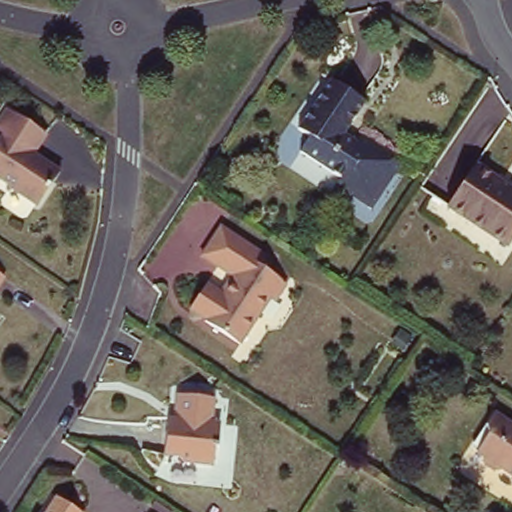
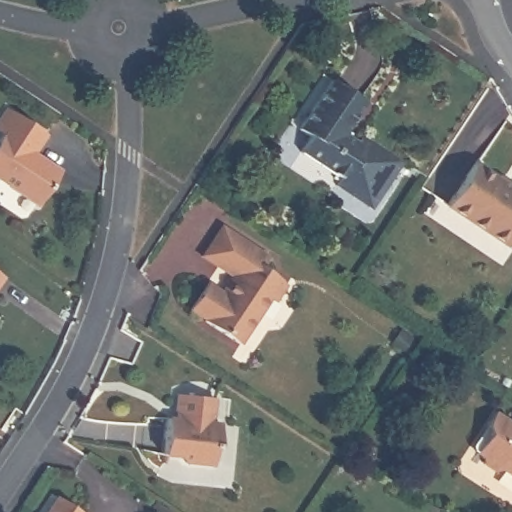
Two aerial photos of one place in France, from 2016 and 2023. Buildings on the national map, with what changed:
unchanged [(372,96),(346,137),(358,144),(363,138),(403,165),(374,210),(334,185),(341,176),(299,150),(309,137),(298,129),(339,74),(372,96)]
unchanged [(48,133),(34,152),(60,169),(39,199),(11,179),(9,181),(0,173),(0,138),(4,132),(0,128),(0,117),(9,104),(48,133)]
unchanged [(472,159),(512,185),(512,231),(504,242),(444,202),(472,159)]
unchanged [(241,343),(206,321),(208,318),(192,307),(209,281),(224,292),(236,276),(203,252),(222,226),(265,254),(259,264),(280,277),(277,282),(283,286),(277,295),(274,293),(262,312),(241,343)]
unchanged [(0,277),(0,272),(2,274),(0,277)]
unchanged [(214,424),(220,425),(218,442),(214,441),(213,463),(186,462),(181,467),(173,455),(158,455),(163,417),(178,419),(178,412),(173,412),(175,396),(214,397),(214,424)]
unchanged [(512,420),(512,470),(502,464),(493,467),(483,460),(481,450),(474,446),(486,427),(484,419),(492,406),(512,420)]
unchanged [(83,512),(47,512),(60,493),(84,511),(83,512)]

